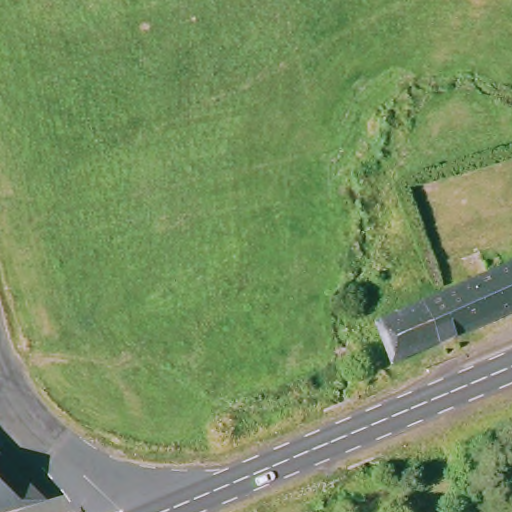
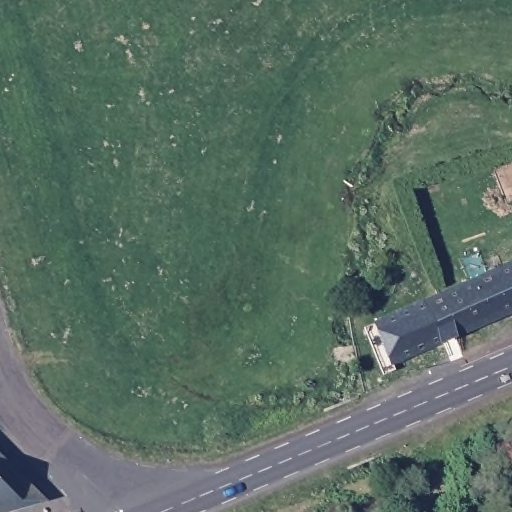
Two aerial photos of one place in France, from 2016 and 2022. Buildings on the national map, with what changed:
unchanged [(399,367),(378,322),(468,282),(460,261),(478,253),(487,274),(512,264),(512,318),(399,367)]
unchanged [(23,506),(11,512),(0,512),(0,462),(40,496),(23,506)]

